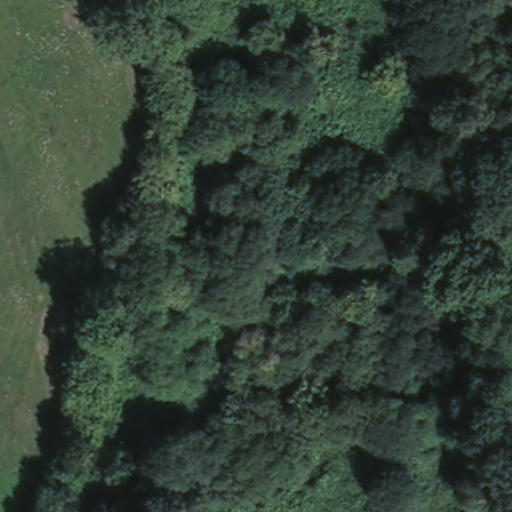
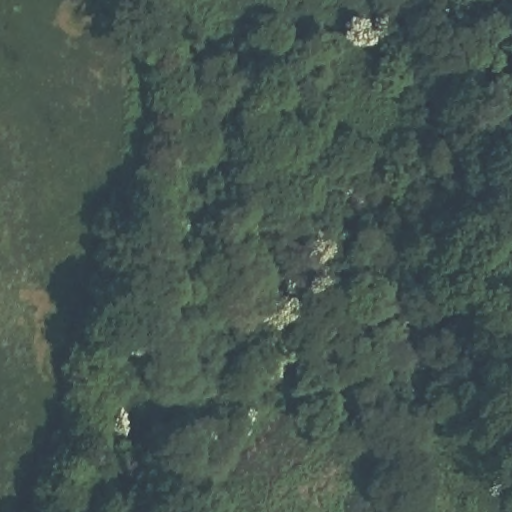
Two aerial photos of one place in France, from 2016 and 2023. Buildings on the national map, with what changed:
[]

